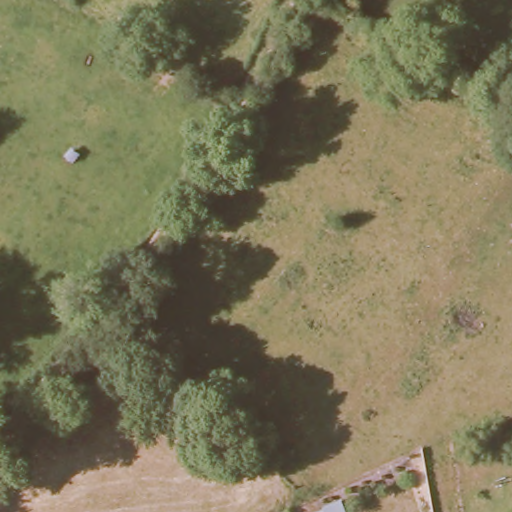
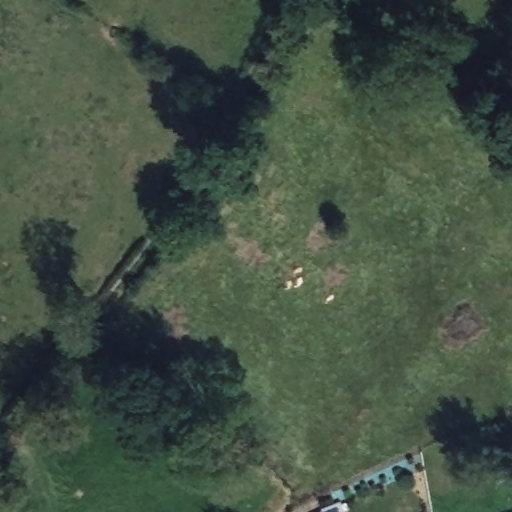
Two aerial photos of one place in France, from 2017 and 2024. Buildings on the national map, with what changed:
unchanged [(318,512),(342,502),(346,512),(318,512)]

